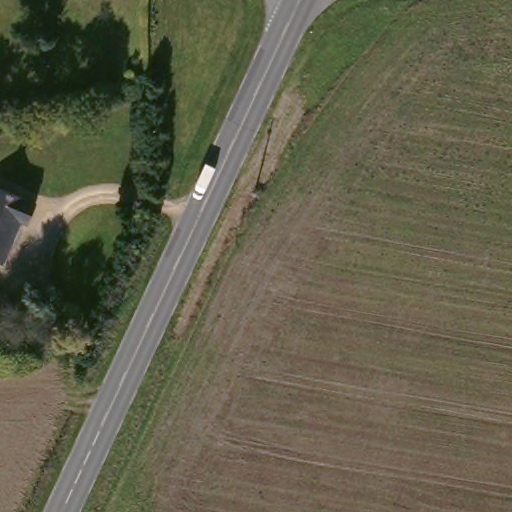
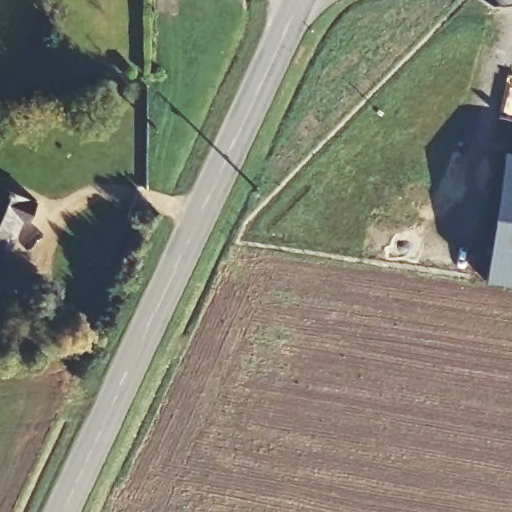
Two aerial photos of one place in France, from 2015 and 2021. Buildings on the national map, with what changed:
new [(503,148),(512,149),(512,281),(483,277),(503,148)]
unchanged [(26,225),(19,223),(3,263),(0,261),(0,190),(35,205),(26,225)]

